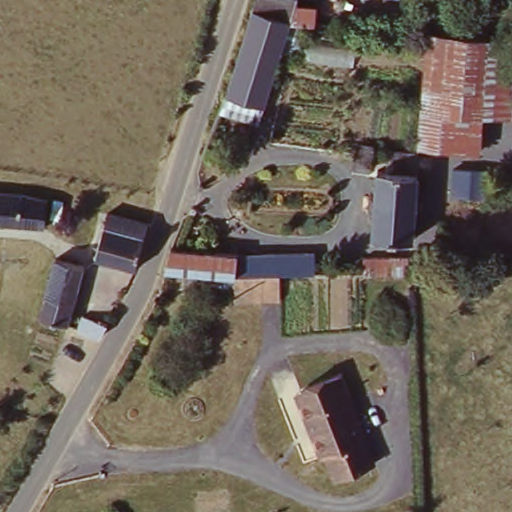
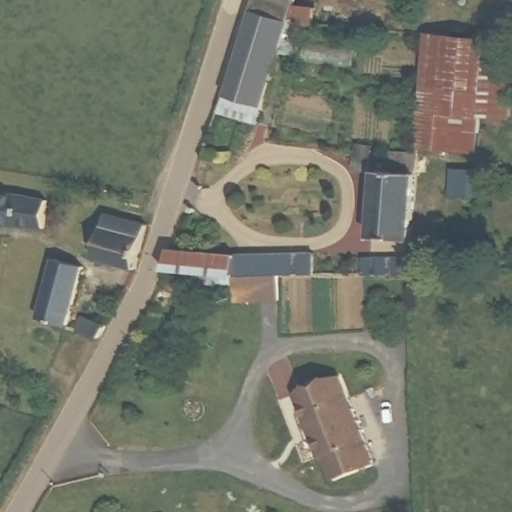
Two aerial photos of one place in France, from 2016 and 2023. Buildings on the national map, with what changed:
unchanged [(221,111),(227,93),(258,0),(295,0),(300,1),(297,8),(318,14),(315,29),(308,26),(298,58),(286,54),(266,109),(248,102),(243,118),(221,111)]
unchanged [(416,147),(430,36),(490,44),(512,48),(512,123),(483,118),(477,156),(416,147)]
unchanged [(350,149),(366,149),(367,172),(351,172),(350,149)]
unchanged [(491,174),(487,199),(452,201),(455,171),(491,174)]
unchanged [(375,174),(417,175),(416,245),(373,244),(375,174)]
unchanged [(41,229),(0,226),(0,197),(20,196),(46,202),(41,229)]
unchanged [(91,267),(97,223),(134,229),(151,232),(141,274),(91,267)]
unchanged [(181,296),(182,278),(161,278),(170,255),(191,259),(308,259),(306,281),(227,279),(210,279),(210,295),(181,296)]
unchanged [(367,259),(411,260),(411,277),(410,277),(363,277),(367,259)]
unchanged [(86,274),(68,339),(40,331),(56,269),(86,274)]
unchanged [(79,333),(84,316),(105,322),(101,338),(79,333)]
unchanged [(380,465),(332,482),(323,455),(318,456),(295,394),(341,376),(380,465)]

